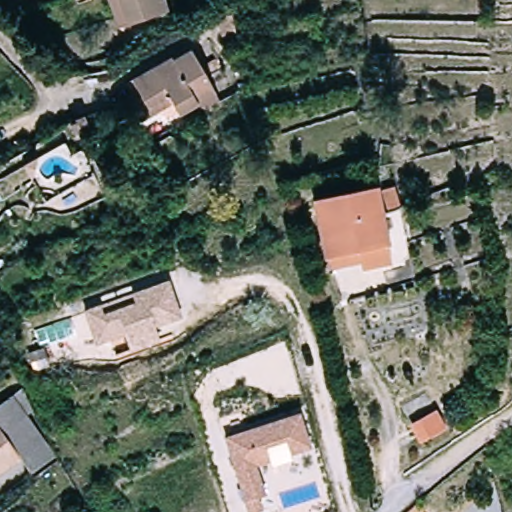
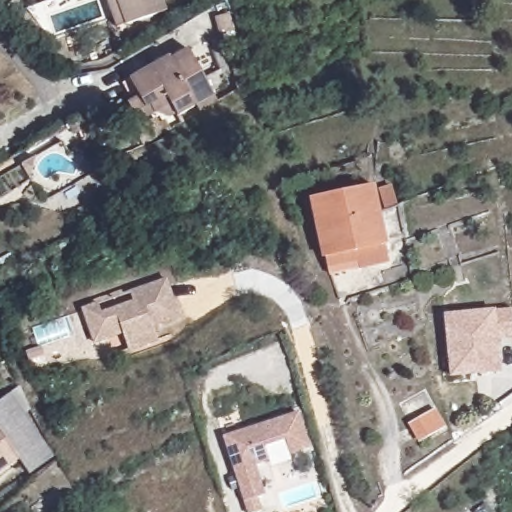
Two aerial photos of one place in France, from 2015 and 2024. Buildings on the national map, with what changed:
unchanged [(167,0),(170,10),(131,21),(122,25),(114,0),(167,0)]
unchanged [(204,109),(200,100),(182,111),(179,106),(171,111),(161,106),(156,98),(150,101),(137,77),(176,55),(179,60),(195,51),(218,90),(223,99),(204,109)]
unchanged [(380,196),(389,250),(328,260),(319,206),(380,196)]
unchanged [(85,307),(99,301),(102,311),(136,299),(133,290),(170,277),(183,313),(157,322),(162,338),(132,348),(125,331),(111,336),(97,341),(85,307)]
new [(446,311),(512,308),(512,336),(496,338),(498,368),(475,370),(450,372),(449,356),(446,311)]
unchanged [(14,389),(55,453),(35,473),(21,457),(0,472),(0,400),(14,389)]
unchanged [(447,426),(426,444),(413,427),(434,410),(447,426)]
unchanged [(301,411),(312,446),(292,452),(287,439),(266,446),(271,460),(257,464),(267,495),(260,498),(264,512),(262,512),(250,512),(225,437),(301,411)]

